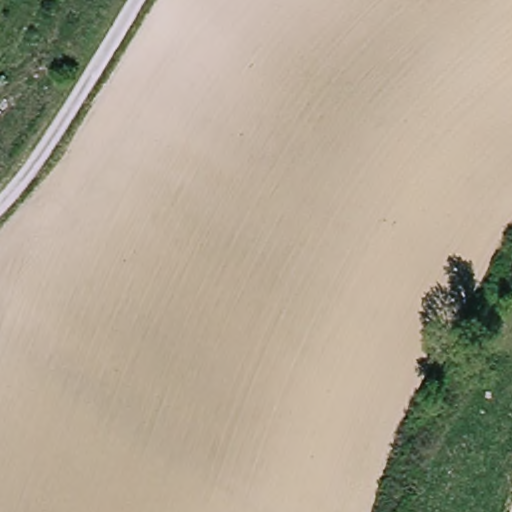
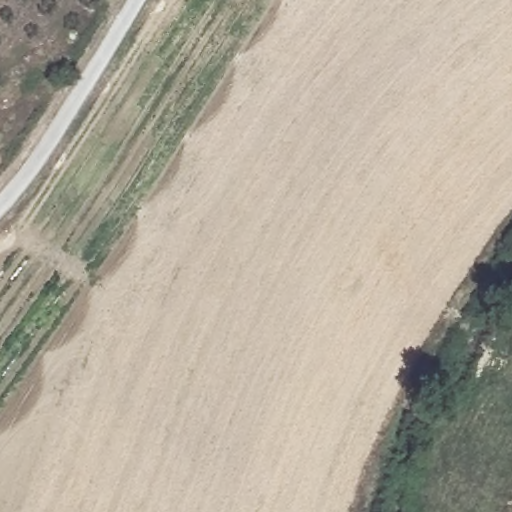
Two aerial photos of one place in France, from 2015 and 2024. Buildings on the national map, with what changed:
[]

